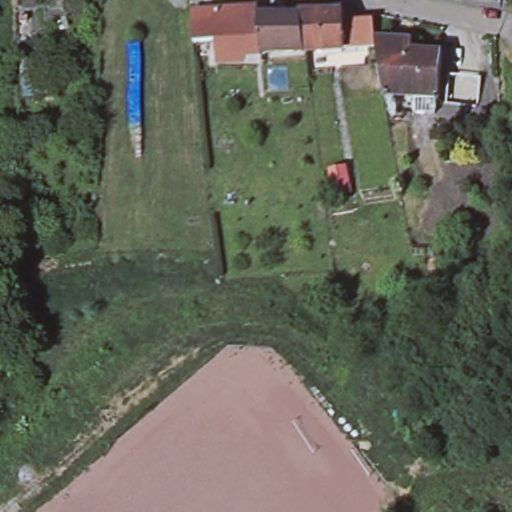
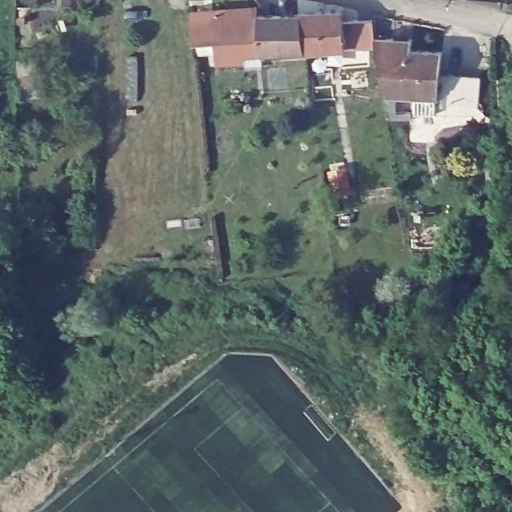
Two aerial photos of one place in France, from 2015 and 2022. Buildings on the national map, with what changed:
unchanged [(241,51),(241,57),(213,58),(213,39),(191,41),(189,10),(246,5),(247,12),(254,12),(258,50),(241,51)]
unchanged [(369,45),(340,46),(299,48),(298,48),(296,11),(296,9),(339,9),(339,18),(368,18),(369,45)]
unchanged [(296,11),(298,48),(258,50),(254,12),(296,11)]
unchanged [(383,114),(379,93),(371,36),(408,38),(407,49),(404,90),(391,91),(392,113),(383,114)]
unchanged [(411,109),(411,90),(404,90),(407,49),(438,50),(435,90),(432,90),(430,109),(411,109)]

